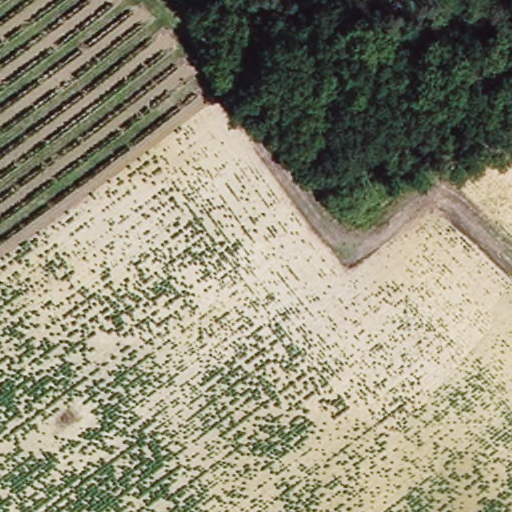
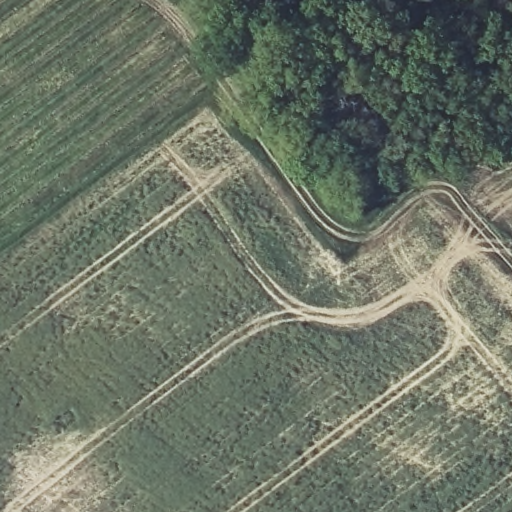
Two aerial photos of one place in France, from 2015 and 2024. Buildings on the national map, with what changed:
unchanged [(342,206),(376,182),(397,166),(383,146),(405,131),(418,123),(445,162),(433,170),(388,202),(355,225),(342,206)]

